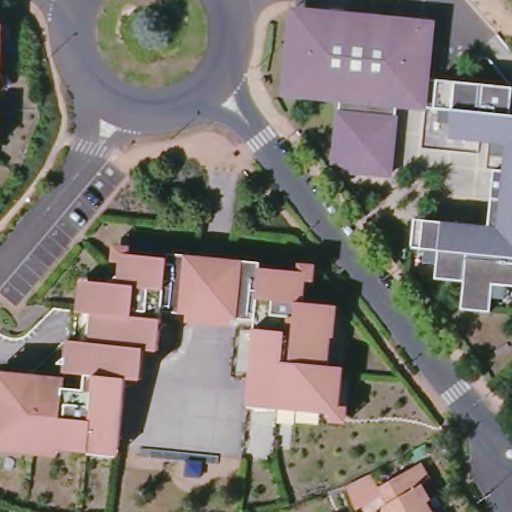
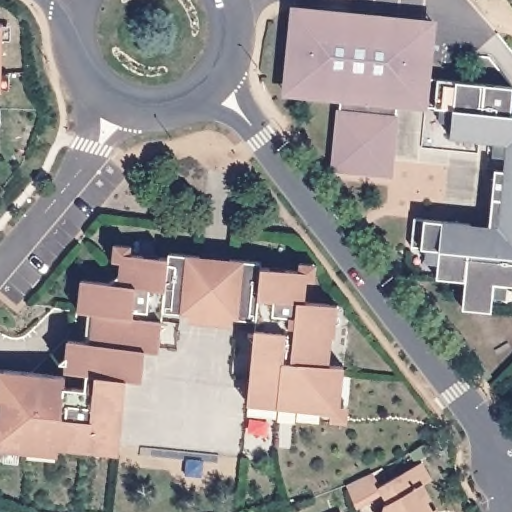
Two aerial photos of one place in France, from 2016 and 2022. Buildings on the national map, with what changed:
unchanged [(404,26),(417,27),(412,100),(397,99),(392,175),(330,171),(335,98),(297,95),(284,95),(286,64),(290,40),(289,36),(290,26),(292,8),(304,9),(404,18),(404,26)]
unchanged [(433,21),(430,79),(429,107),(412,106),(412,100),(417,27),(404,26),(404,18),(433,21)]
unchanged [(2,93),(0,92),(0,25),(4,26),(2,93)]
unchanged [(492,167),(504,168),(507,142),(450,138),(452,108),(429,107),(430,79),(512,86),(510,115),(512,115),(512,286),(489,284),(486,311),(459,308),(462,282),(435,279),(437,249),(408,247),(410,218),(469,223),(467,235),(485,237),(489,198),(492,167)]
unchanged [(1,147),(0,147),(0,109),(2,110),(1,147)]
unchanged [(330,302),(327,333),(332,333),(329,364),(344,365),(339,412),(279,405),(279,398),(248,395),(256,318),(164,309),(160,349),(139,346),(135,376),(127,376),(120,445),(90,441),(90,450),(29,444),(27,451),(0,448),(0,401),(3,370),(65,376),(64,386),(84,388),(85,372),(64,370),(67,339),(91,341),(95,310),(86,309),(89,279),(109,281),(119,272),(122,251),(168,256),(169,251),(262,260),(262,266),(307,270),(305,300),(330,302)]
unchanged [(390,510),(379,495),(417,466),(429,482),(420,489),(430,503),(427,505),(433,512),(387,512),(390,510)]

